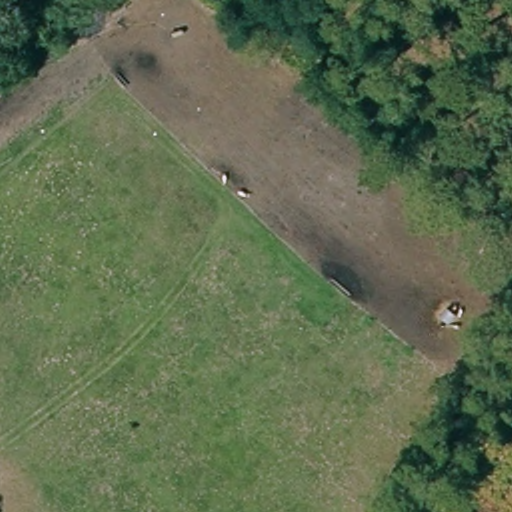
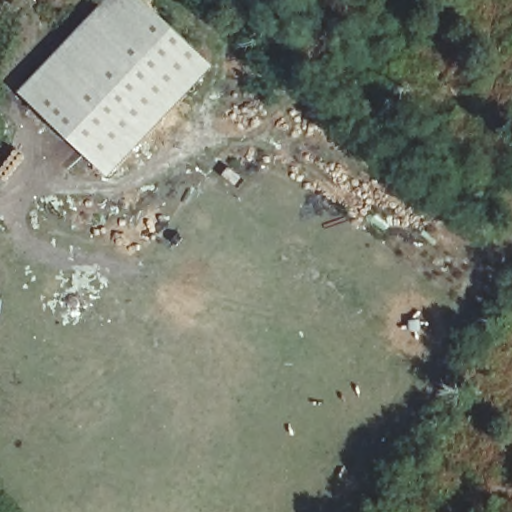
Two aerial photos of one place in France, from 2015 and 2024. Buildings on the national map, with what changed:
new [(20,93),(107,0),(142,0),(214,66),(110,177),(20,93)]
unchanged [(275,4),(271,0),(280,0),(275,4)]

